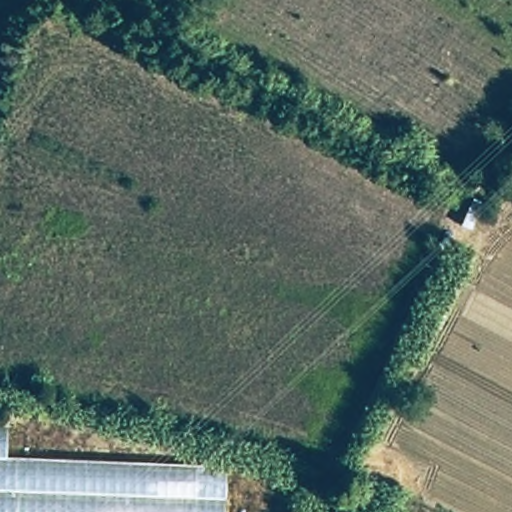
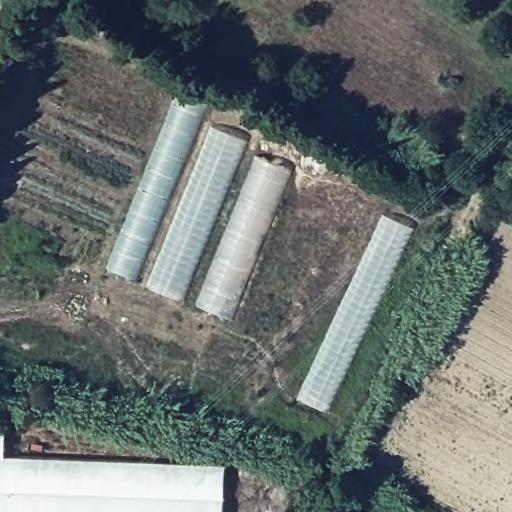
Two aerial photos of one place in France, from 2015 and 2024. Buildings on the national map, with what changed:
new [(137,281),(107,268),(178,92),(209,105),(137,281)]
new [(292,171),(232,320),(197,306),(257,156),(292,171)]
new [(385,215),(415,229),(328,413),(299,399),(385,215)]
unchanged [(218,512),(0,512),(0,427),(10,428),(10,460),(160,471),(218,475),(218,512)]

